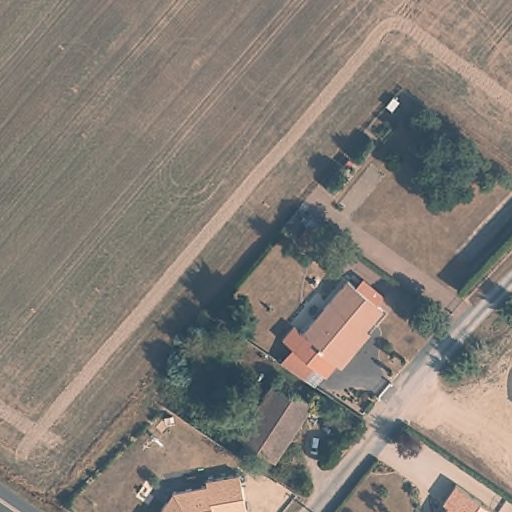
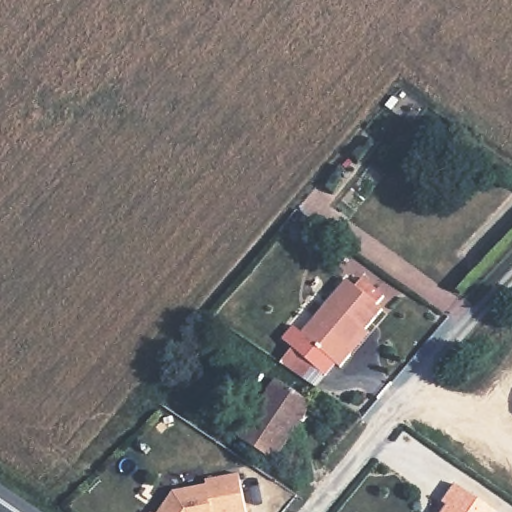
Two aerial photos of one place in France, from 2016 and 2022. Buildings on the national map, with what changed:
unchanged [(306,226),(317,237),(305,249),(294,238),(306,226)]
unchanged [(287,341),(274,330),(284,319),(292,326),(339,274),(357,291),(364,282),(373,291),(366,299),(371,304),(336,345),(340,348),(328,360),(323,356),(315,366),(303,355),(290,369),(271,357),(287,341)]
unchanged [(311,402),(272,461),(238,438),(276,379),(311,402)]
unchanged [(172,498),(205,489),(204,484),(239,474),(249,512),(163,512),(172,498)]
unchanged [(442,502),(454,484),(497,512),(444,512),(448,506),(442,502)]

